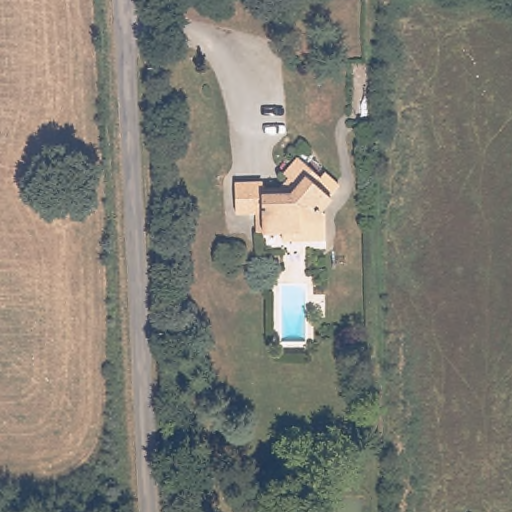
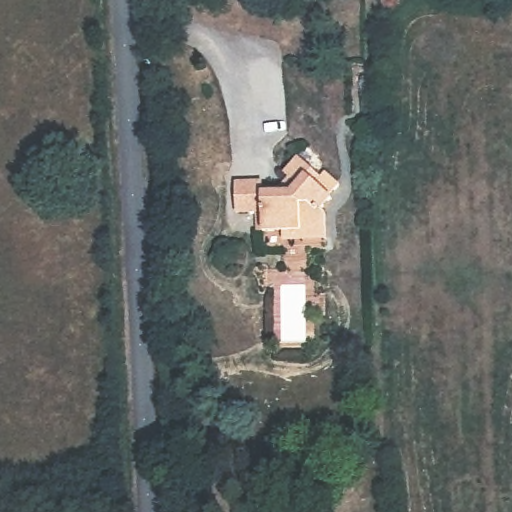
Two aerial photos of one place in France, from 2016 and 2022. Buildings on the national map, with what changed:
unchanged [(286,234),(268,234),(262,235),(261,217),(240,217),(239,186),(266,186),(267,194),(285,194),(293,181),(289,178),(300,162),(317,179),(322,175),(339,191),(330,209),(330,242),(311,242),(303,243),(287,244),(286,234)]

